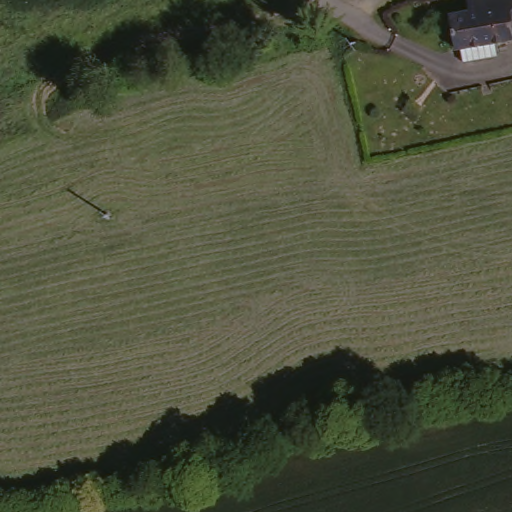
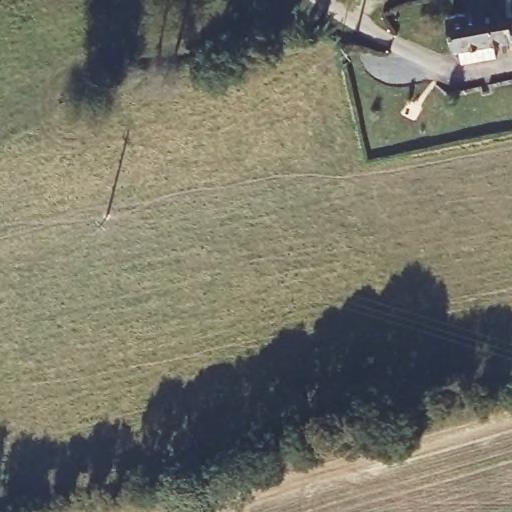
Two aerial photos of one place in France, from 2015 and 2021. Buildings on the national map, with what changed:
unchanged [(471,0),(512,0),(512,41),(500,42),(502,58),(470,63),(467,47),(458,49),(453,16),(474,12),(471,0)]

